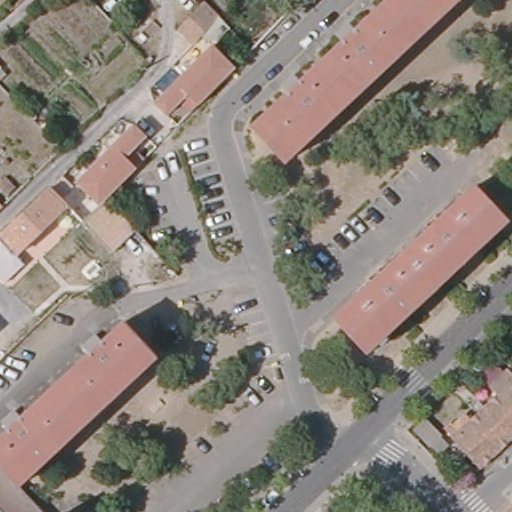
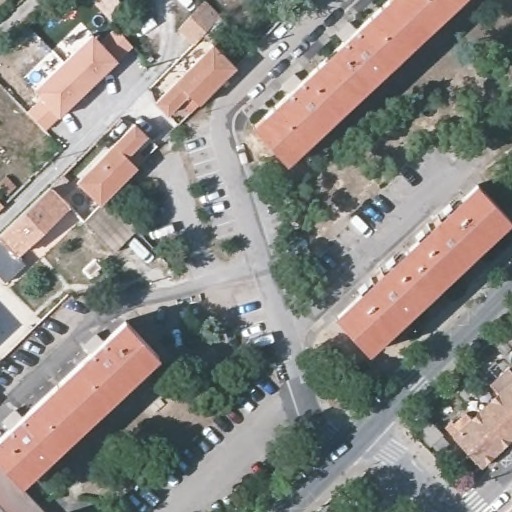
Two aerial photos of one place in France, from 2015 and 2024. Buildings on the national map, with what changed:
unchanged [(287,95),(280,87),(293,75),(300,82),(342,43),(335,35),(348,23),(355,30),(387,0),(460,0),(287,162),(253,125),(287,95)]
unchanged [(174,29),(188,14),(199,4),(214,20),(190,45),(174,29)]
new [(41,97),(35,91),(93,35),(99,42),(116,27),(135,47),(118,61),(61,116),(47,131),(28,112),(41,97)]
unchanged [(161,100),(218,42),(241,64),(204,102),(193,91),(173,112),(161,100)]
unchanged [(135,121),(147,132),(126,154),(137,164),(109,192),(101,199),(78,179),(135,121)]
unchanged [(66,207),(19,253),(26,261),(9,277),(2,271),(0,272),(0,232),(51,182),(70,201),(69,202),(84,217),(79,221),(66,207)]
unchanged [(328,317),(470,185),(502,220),(360,351),(328,317)]
unchanged [(99,200),(101,199),(107,192),(109,192),(137,224),(113,247),(84,217),(99,200)]
unchanged [(0,201),(6,207),(0,212),(0,201)]
unchanged [(0,442),(125,321),(158,355),(23,485),(0,462),(0,442)]
unchanged [(486,405),(495,395),(487,387),(509,367),(512,370),(512,431),(486,405)]
unchanged [(484,467),(446,428),(453,422),(455,424),(470,410),(475,416),(486,405),(512,431),(512,439),(484,467)]
unchanged [(448,442),(438,452),(431,444),(429,446),(414,430),(426,417),(442,434),(441,436),(448,442)]
unchanged [(0,506),(0,462),(23,485),(48,512),(6,512),(0,506)]
unchanged [(512,511),(512,512),(511,512),(512,511)]

